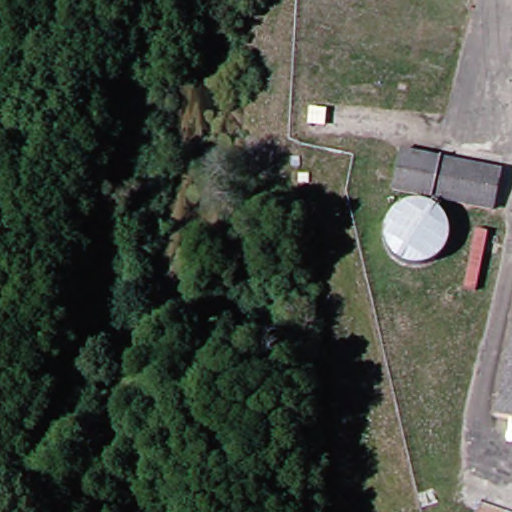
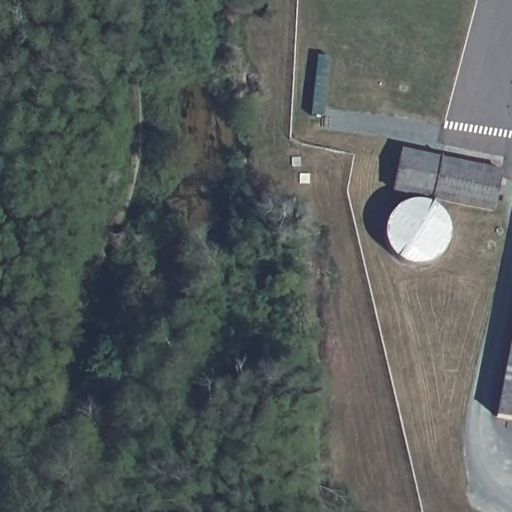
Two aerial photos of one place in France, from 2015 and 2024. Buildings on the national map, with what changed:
unchanged [(376,186),(388,142),(476,162),(493,148),(486,209),(434,197),(391,189),(376,186)]
unchanged [(484,439),(512,297),(512,445),(484,439)]

